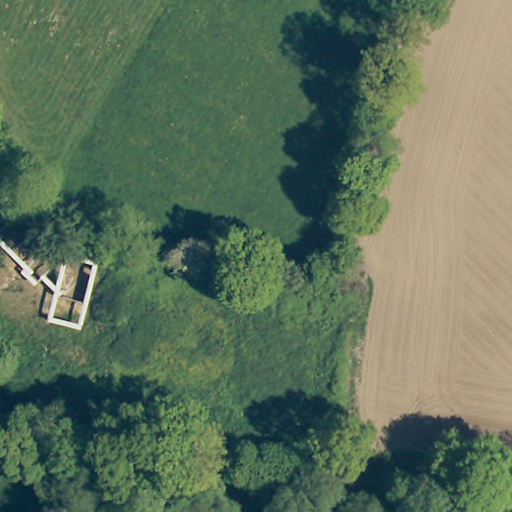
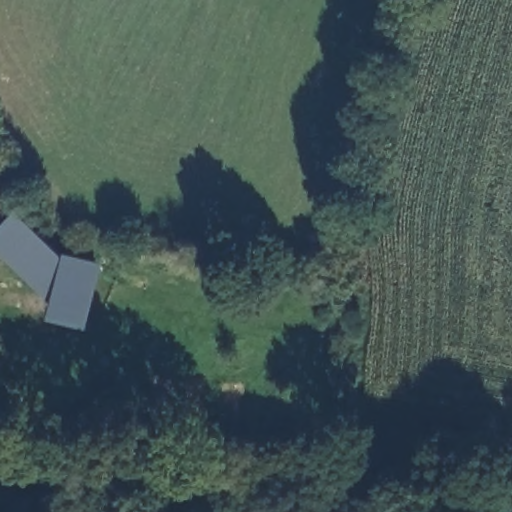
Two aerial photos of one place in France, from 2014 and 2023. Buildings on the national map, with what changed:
demolished [(0,220),(0,187),(15,209),(0,220)]
new [(7,210),(0,215),(0,199),(7,210)]
new [(16,209),(65,254),(104,263),(89,330),(49,321),(53,301),(0,250),(0,227),(16,209)]

